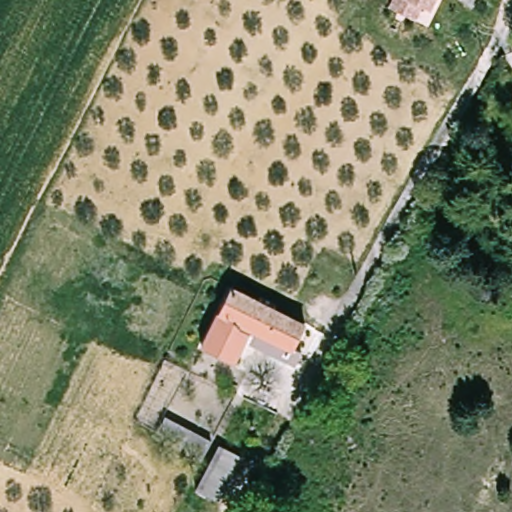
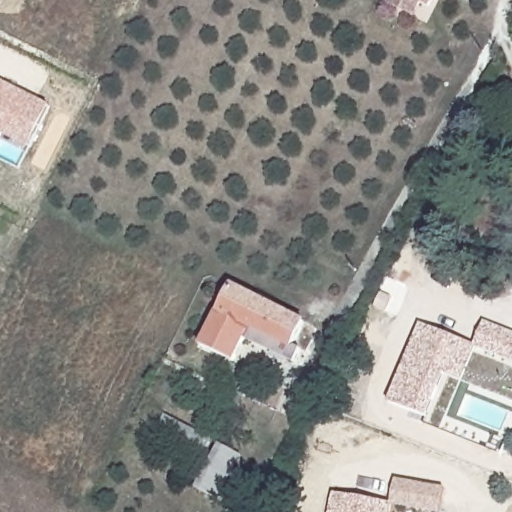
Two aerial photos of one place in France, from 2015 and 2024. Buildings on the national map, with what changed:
unchanged [(391,6),(394,0),(435,0),(430,9),(424,5),(415,20),(391,6)]
new [(0,80),(49,105),(28,148),(0,134),(0,80)]
unchanged [(230,356),(204,341),(236,277),(307,313),(295,337),(307,343),(302,353),(248,326),(230,356)]
new [(421,324),(474,344),(484,322),(512,334),(512,363),(475,347),(462,381),(445,374),(428,418),(389,402),(421,324)]
unchanged [(168,410),(247,454),(222,499),(190,483),(206,452),(158,431),(168,410)]
new [(391,502),(396,480),(445,489),(440,512),(434,512),(392,504),(390,512),(332,512),(335,493),(391,502)]

